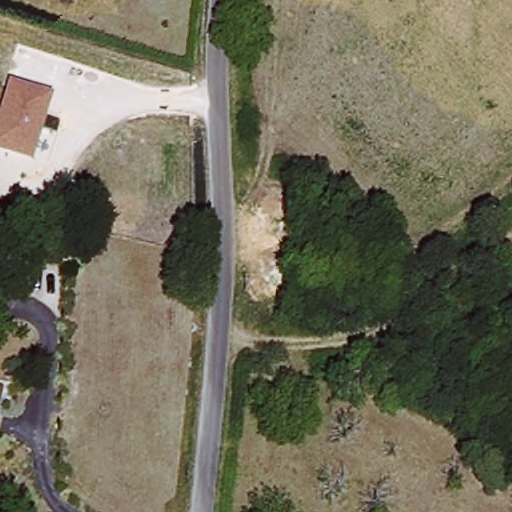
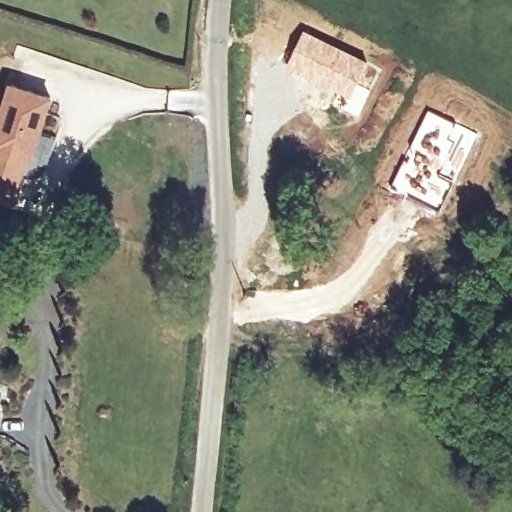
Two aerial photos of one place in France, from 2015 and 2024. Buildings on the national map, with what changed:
new [(304,29),(380,69),(357,116),(342,108),(346,101),(284,71),(304,29)]
unchanged [(33,164),(0,153),(0,112),(9,84),(54,97),(33,164)]
unchanged [(0,401),(0,392),(2,392),(0,401)]
demolished [(0,419),(0,402),(7,406),(0,419)]

